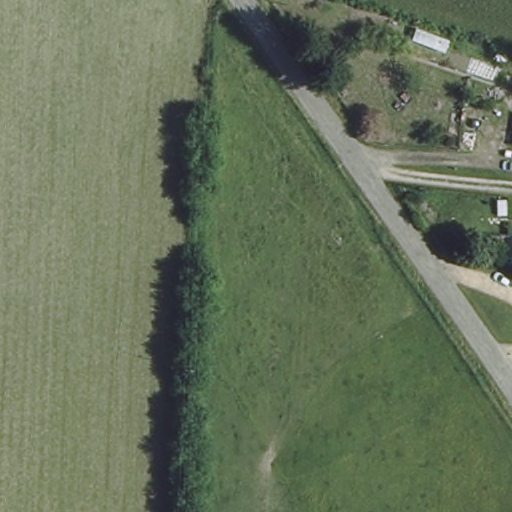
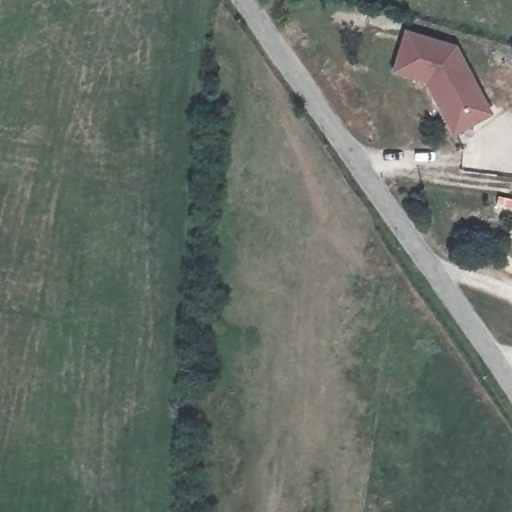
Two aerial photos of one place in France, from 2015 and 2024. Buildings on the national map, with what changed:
new [(405,31),(458,45),(494,115),(453,137),(426,84),(391,74),(405,31)]

